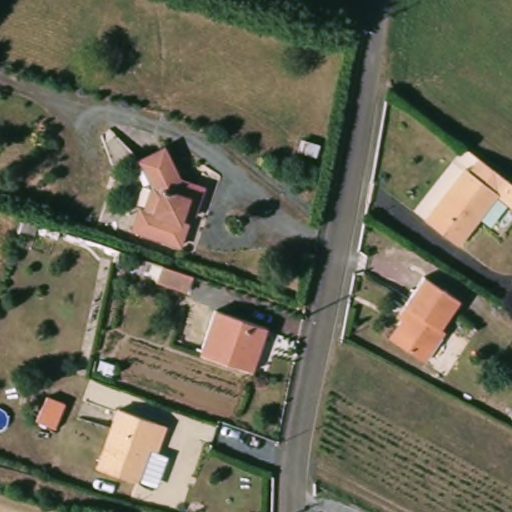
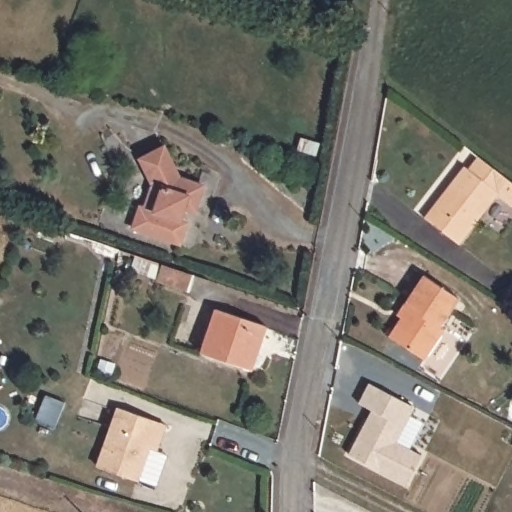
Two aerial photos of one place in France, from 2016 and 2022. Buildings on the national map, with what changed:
unchanged [(179,178),(204,187),(200,199),(196,210),(194,212),(192,213),(189,212),(185,210),(182,222),(187,224),(180,246),(133,230),(139,208),(145,210),(152,186),(139,161),(164,148),(179,178)]
unchanged [(497,195),(458,245),(425,220),(464,168),(468,172),(479,158),(512,183),(512,207),(497,195)]
unchanged [(166,266),(192,275),(187,292),(157,282),(162,265),(166,266)]
unchanged [(458,298),(440,325),(445,329),(425,360),(390,337),(402,317),(397,314),(403,305),(422,275),(458,298)]
unchanged [(251,371),(201,354),(215,311),(265,328),(251,371)]
new [(374,405),(361,398),(371,378),(416,402),(398,437),(424,451),(408,480),(350,449),(374,405)]
new [(48,399),(65,406),(55,435),(38,428),(48,399)]
unchanged [(118,411),(157,424),(166,428),(157,453),(149,450),(138,483),(98,469),(118,411)]

